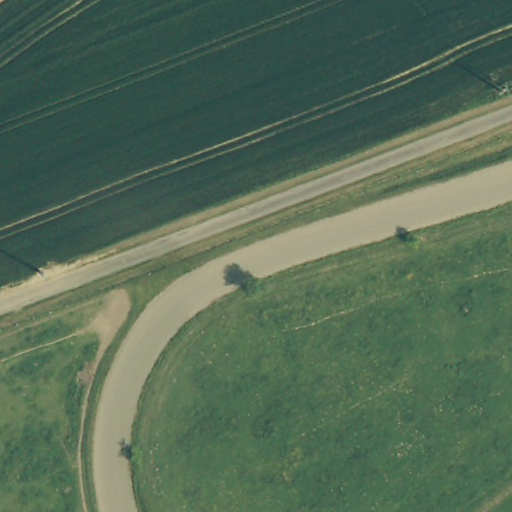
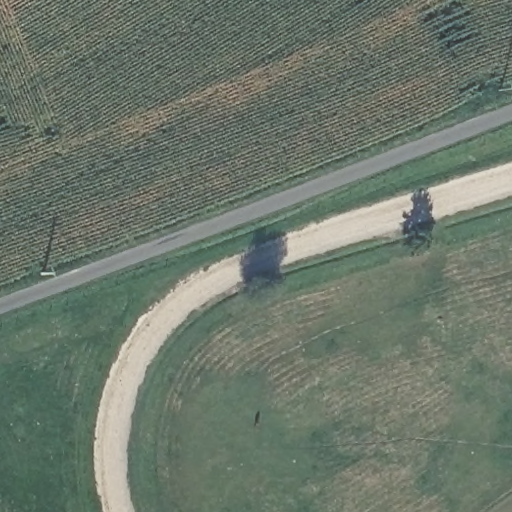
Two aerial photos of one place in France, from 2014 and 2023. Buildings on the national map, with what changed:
[]

